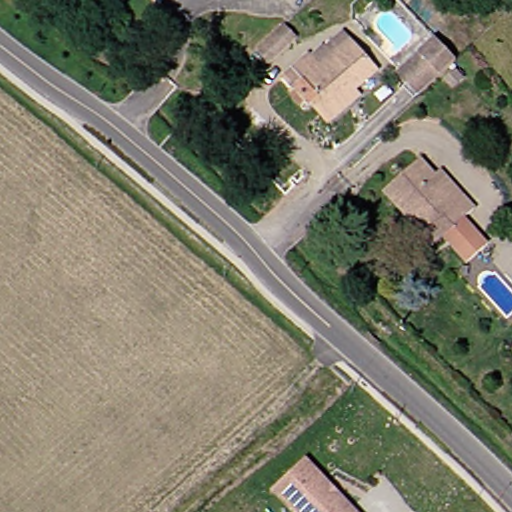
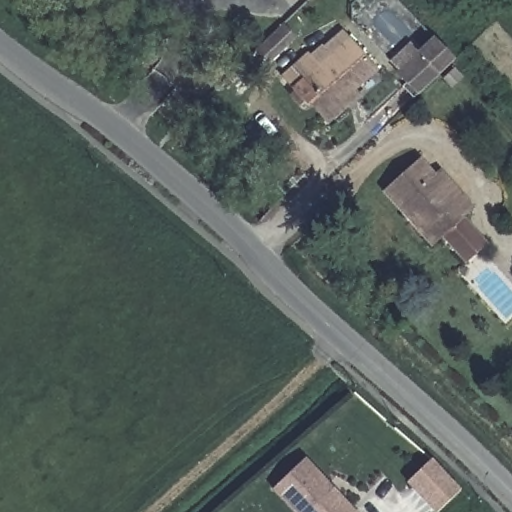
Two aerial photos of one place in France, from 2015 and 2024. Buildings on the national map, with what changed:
unchanged [(447,59),(411,92),(386,66),(422,32),(447,59)]
unchanged [(323,121),(310,107),(304,113),(280,86),(300,66),(303,69),(314,58),(317,60),(342,38),(365,64),(344,85),(351,93),(323,121)]
unchanged [(254,72),(244,62),(265,40),(275,50),(254,72)]
unchanged [(398,218),(369,190),(403,156),(423,176),(429,170),(451,192),(463,204),(435,232),(424,244),(398,218)]
unchanged [(492,246),(468,266),(438,231),(461,209),(492,246)]
unchanged [(304,459),(357,512),(294,512),(273,491),(304,459)]
new [(461,489),(435,512),(434,512),(406,483),(431,459),(461,489)]

